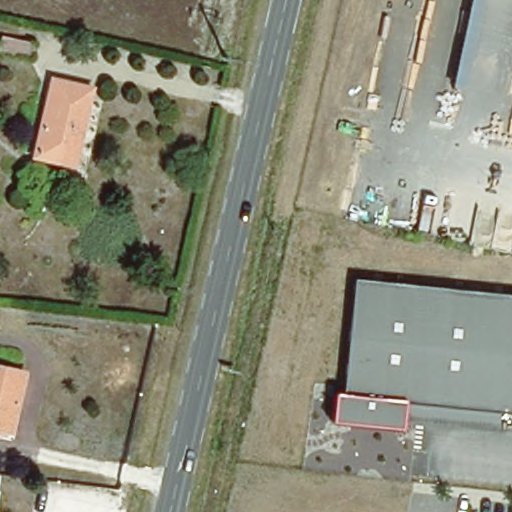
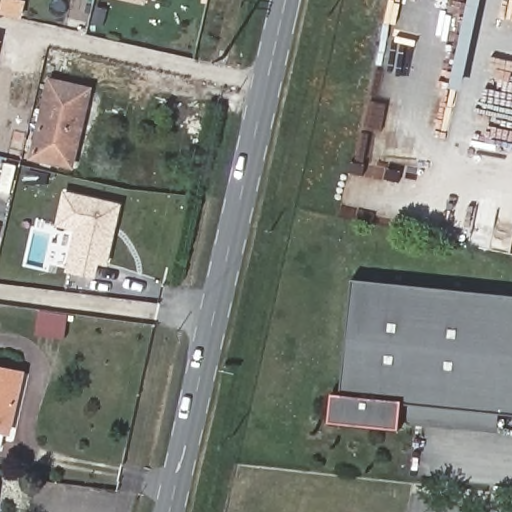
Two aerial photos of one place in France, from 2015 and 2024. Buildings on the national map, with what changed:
new [(146,5),(126,0),(147,0),(146,5)]
unchanged [(28,60),(0,54),(0,37),(1,35),(32,42),(28,60)]
new [(0,42),(0,38),(1,38),(0,42)]
unchanged [(90,83),(71,160),(33,151),(50,74),(90,83)]
new [(122,203),(108,266),(101,264),(98,278),(66,271),(76,230),(56,226),(66,192),(122,203)]
unchanged [(512,296),(512,411),(500,410),(498,432),(403,423),(400,431),(331,424),(334,393),(344,393),(356,280),(512,296)]
unchanged [(9,426),(0,424),(0,362),(21,367),(9,426)]

